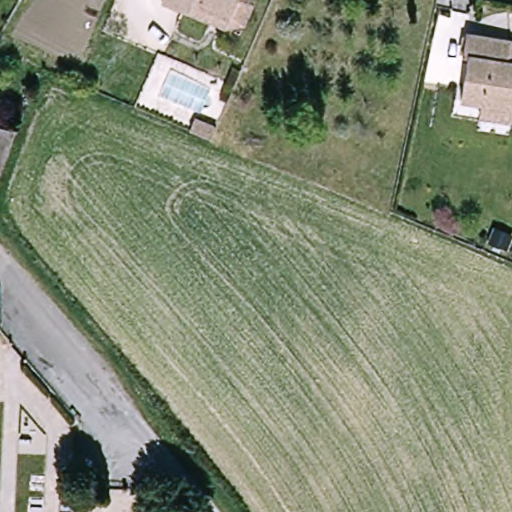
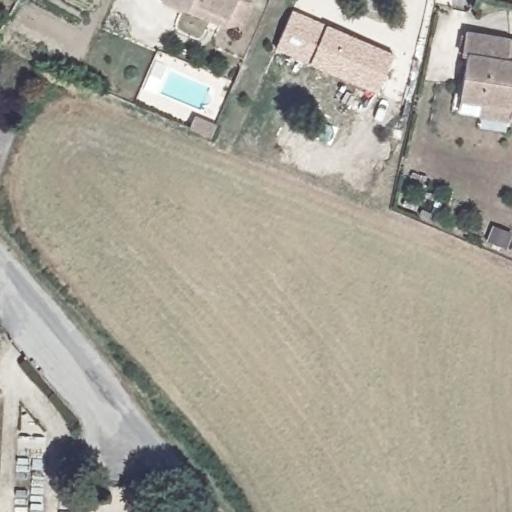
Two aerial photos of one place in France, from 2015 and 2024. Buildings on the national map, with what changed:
unchanged [(187,26),(164,17),(170,0),(255,0),(249,16),(238,12),(229,33),(189,19),(187,26)]
new [(275,49),(293,10),(327,25),(395,56),(377,94),(310,64),(275,49)]
unchanged [(477,97),(458,92),(466,51),(463,49),(469,29),(511,39),(506,60),(512,61),(512,116),(505,114),(504,117),(475,110),(477,97)]
unchanged [(190,121),(211,129),(206,141),(185,132),(190,121)]
unchanged [(13,130),(0,157),(0,124),(13,130)]

